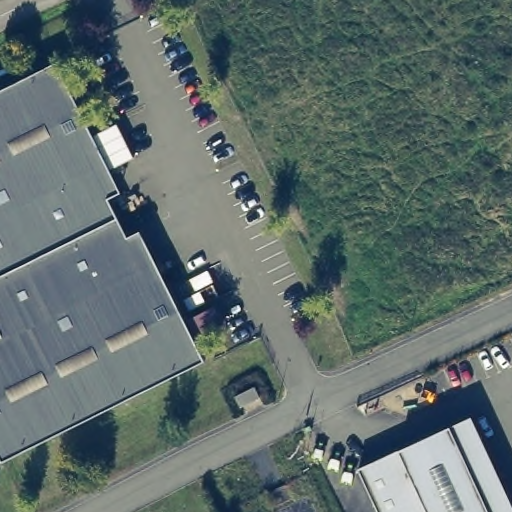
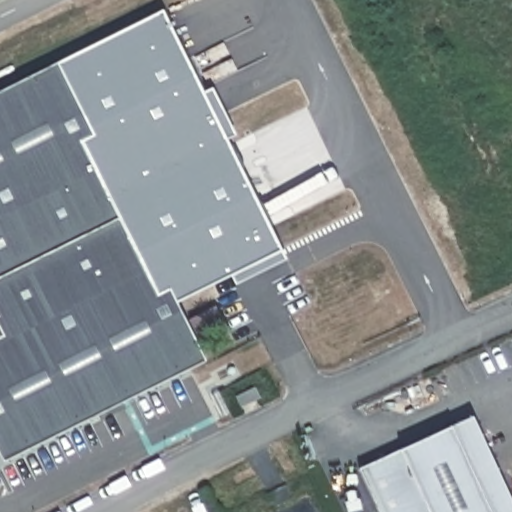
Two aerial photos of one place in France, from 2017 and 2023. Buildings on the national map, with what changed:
new [(163,12),(203,93),(213,89),(236,136),(227,141),(282,252),(177,302),(170,290),(155,297),(128,241),(110,202),(82,142),(96,135),(61,61),(163,12)]
unchanged [(205,364),(0,459),(0,91),(61,61),(96,135),(82,142),(110,202),(128,241),(155,297),(170,290),(205,364)]
demolished [(268,396),(263,387),(282,378),(287,387),(268,396)]
unchanged [(470,415),(505,492),(484,501),(450,424),(470,415)]
unchanged [(450,424),(484,501),(505,492),(512,508),(512,512),(377,512),(357,465),(450,424)]

